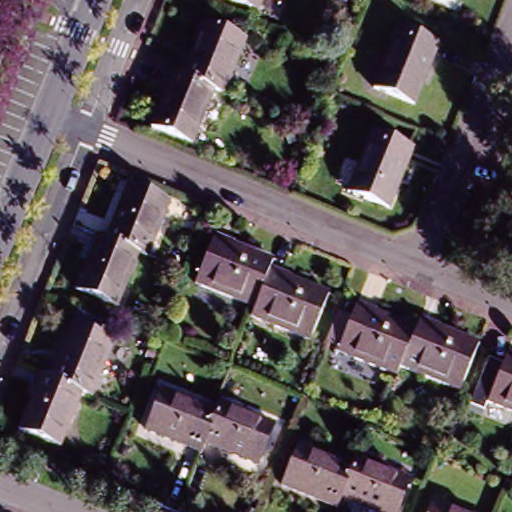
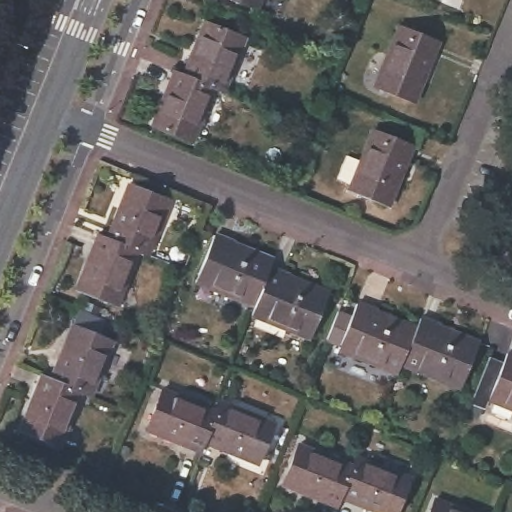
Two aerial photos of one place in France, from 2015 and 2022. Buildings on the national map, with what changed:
unchanged [(253,16),(217,0),(260,0),(253,16)]
unchanged [(441,4),(431,0),(442,0),(441,4)]
unchanged [(180,79),(202,23),(242,40),(219,95),(189,82),(180,79)]
unchanged [(394,27),(435,44),(410,103),(370,86),(394,27)]
unchanged [(219,95),(229,99),(207,151),(167,135),(189,82),(219,95)]
unchanged [(373,134),(413,152),(389,211),(348,195),(373,134)]
unchanged [(134,191),(174,207),(151,263),(142,259),(111,247),(134,191)]
unchanged [(270,269),(254,307),(194,282),(213,235),(274,260),(270,269)]
unchanged [(111,247),(142,259),(121,311),(81,294),(102,243),(111,247)]
unchanged [(270,269),(329,294),(310,340),(250,316),(254,307),(270,269)]
unchanged [(416,329),(400,368),(340,343),(360,295),(420,319),(416,329)]
unchanged [(44,381),(67,324),(107,341),(84,397),(76,394),(44,381)]
unchanged [(416,329),(475,354),(456,401),(397,376),(400,368),(416,329)]
unchanged [(512,360),(512,417),(482,404),(477,415),(464,409),(484,358),(493,361),(497,353),(512,360)]
unchanged [(44,381),(76,394),(54,446),(15,430),(36,377),(44,381)]
unchanged [(199,458),(146,437),(162,397),(216,418),(202,449),(199,458)]
unchanged [(216,418),(219,409),(274,430),(257,472),(202,449),(216,418)]
unchanged [(331,512),(281,492),(297,452),(352,474),(340,505),(337,512),(331,512)]
unchanged [(356,464),(411,486),(400,512),(356,512),(340,505),(352,474),(356,464)]
unchanged [(455,512),(425,512),(429,501),(455,512)]

